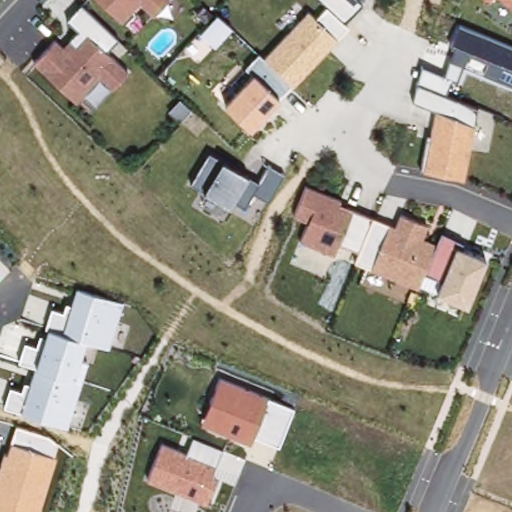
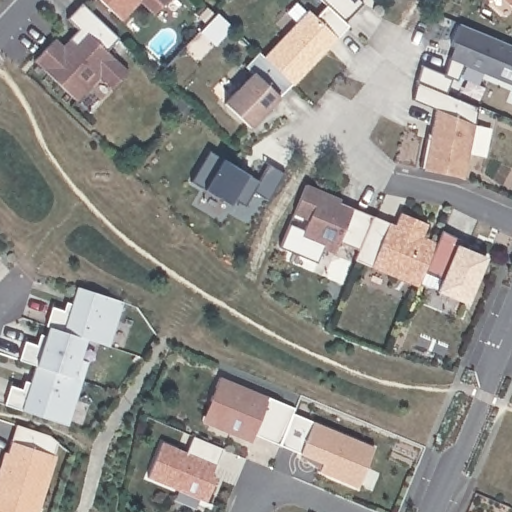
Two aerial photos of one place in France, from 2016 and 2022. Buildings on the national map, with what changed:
unchanged [(142,2),(123,20),(101,0),(169,0),(156,15),(142,2)]
unchanged [(345,22),(348,26),(249,128),(222,102),(250,72),(243,67),(260,50),(265,55),(308,11),(316,17),(327,5),(322,0),(365,0),(363,2),(345,22)]
unchanged [(487,0),(490,0),(489,1),(487,0)]
unchanged [(512,0),(512,10),(500,0),(512,0)]
unchanged [(57,35),(67,42),(80,30),(67,18),(83,1),(122,38),(111,52),(132,70),(116,89),(103,77),(80,103),(35,62),(57,35)]
unchanged [(422,65),(444,75),(453,47),(450,46),(460,25),(512,47),(512,87),(482,74),(487,60),(468,52),(462,66),(456,81),(450,78),(444,92),(417,82),(422,65)]
unchanged [(476,105),(462,180),(421,169),(433,110),(414,98),(417,82),(476,105)]
unchanged [(260,179),(270,161),(285,169),(269,201),(253,192),(245,205),(232,200),(229,205),(191,183),(210,150),(260,179)]
unchanged [(341,198),(340,202),(395,223),(400,211),(426,222),(421,234),(437,241),(441,232),(466,242),(462,249),(485,258),(466,307),(434,294),(439,279),(423,272),(417,286),(353,263),(357,251),(338,243),(333,253),(299,239),(306,221),(293,214),(306,183),(341,198)]
unchanged [(4,405),(10,386),(21,390),(24,382),(30,382),(34,365),(19,360),(25,342),(36,345),(39,336),(39,334),(46,334),(47,327),(44,327),(51,308),(62,311),(65,303),(72,304),(76,288),(122,303),(107,347),(86,340),(79,361),(87,364),(67,426),(4,405)]
unchanged [(254,435),(250,445),(201,423),(220,378),(294,410),(278,447),(254,435)]
new [(294,410),(374,446),(357,489),(318,472),(321,465),(278,447),(294,410)]
unchanged [(4,453),(7,454),(15,425),(49,436),(57,444),(52,456),(55,457),(38,512),(0,512),(0,465),(4,453)]
unchanged [(146,479),(161,442),(186,453),(192,438),(222,450),(211,476),(216,477),(205,502),(146,479)]

